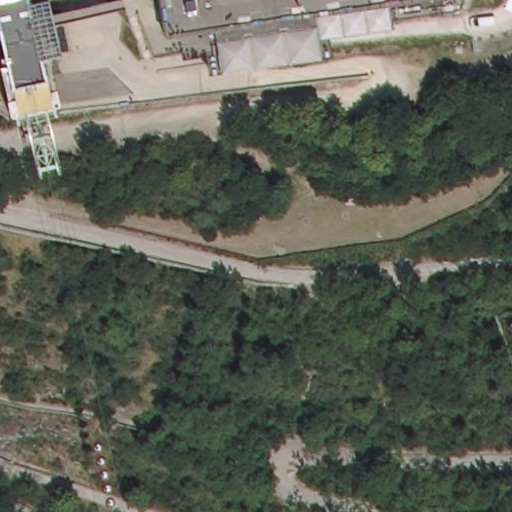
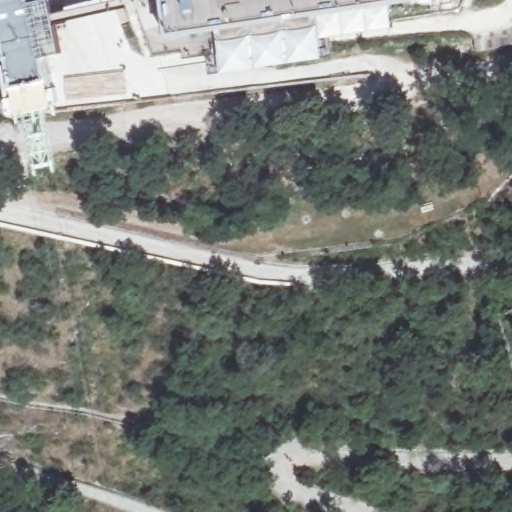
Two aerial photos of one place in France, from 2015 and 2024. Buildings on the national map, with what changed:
unchanged [(32,104),(12,107),(9,80),(0,81),(0,0),(32,0),(35,9),(39,27),(54,101),(32,104)]
unchanged [(39,27),(35,9),(40,9),(56,5),(62,3),(70,0),(166,0),(167,6),(127,3),(67,19),(39,27)]
unchanged [(221,22),(171,29),(167,0),(367,0),(321,7),(221,22)]
unchanged [(324,34),(325,42),(226,58),(225,49),(223,36),(221,22),(321,7),(322,21),(324,34)]

